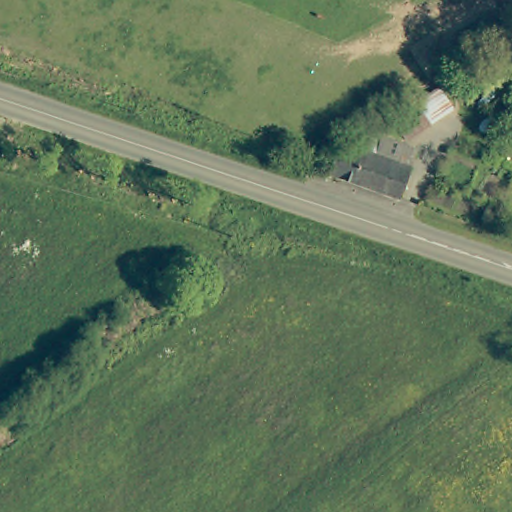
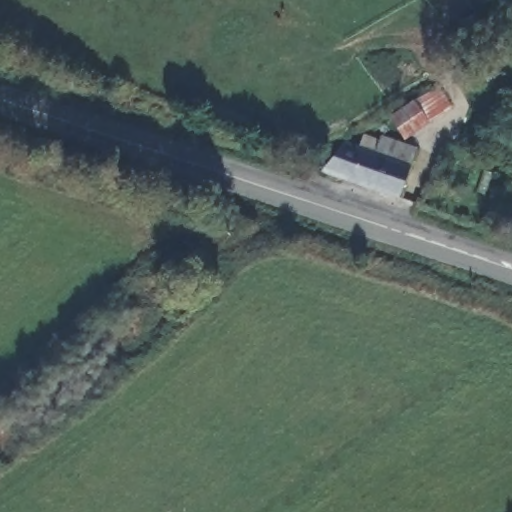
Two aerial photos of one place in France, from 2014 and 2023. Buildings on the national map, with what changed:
unchanged [(450,109),(405,141),(390,121),(436,87),(450,109)]
unchanged [(351,147),(363,151),(367,140),(380,144),(382,136),(413,149),(398,196),(321,167),(351,147)]

